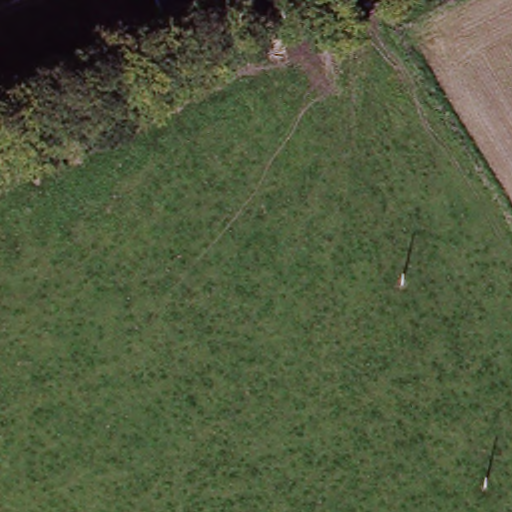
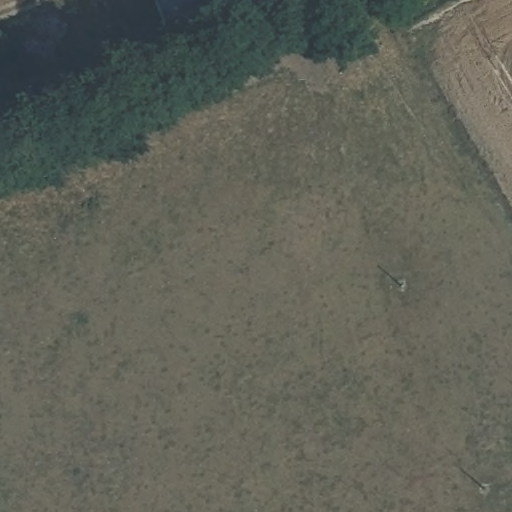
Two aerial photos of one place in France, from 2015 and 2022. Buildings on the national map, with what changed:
unchanged [(149,0),(250,0),(258,20),(173,56),(149,0)]

